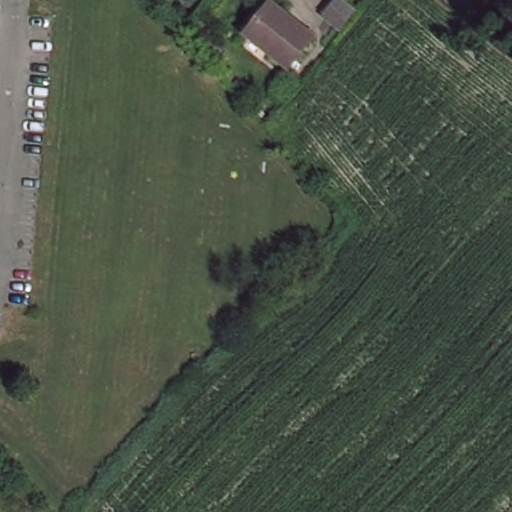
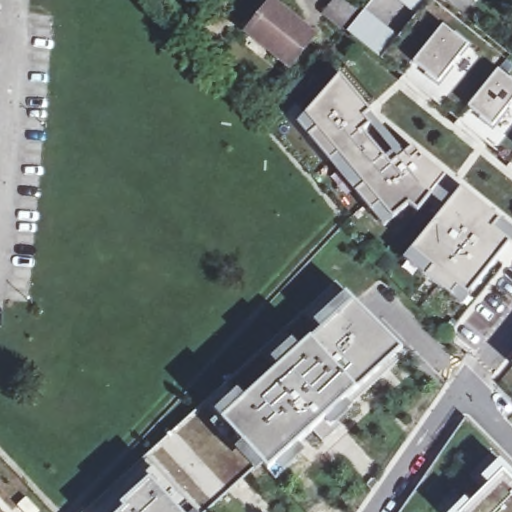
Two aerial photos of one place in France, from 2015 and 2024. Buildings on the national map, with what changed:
new [(348,33),(374,0),(440,0),(512,57),(512,164),(348,33)]
unchanged [(273,2),(315,38),(289,68),(271,53),(275,49),(251,28),(273,2)]
new [(341,157),(332,164),(309,138),(319,131),(306,117),(341,77),(373,114),(366,120),(373,128),(365,134),(393,167),(414,149),(421,156),(417,159),(420,162),(424,159),(447,178),(419,214),(411,207),(394,221),(378,202),(369,209),(357,194),(366,187),(344,161),(341,157)]
new [(501,221),(494,230),(511,244),(498,260),(499,261),(472,294),(463,286),(453,298),(428,277),(434,269),(413,251),(449,207),(449,208),(463,190),(501,221)]
new [(338,285),(409,356),(337,422),(344,429),(326,445),(315,434),(271,474),(263,465),(212,512),(90,512),(338,285)]
new [(468,419),(512,463),(512,512),(403,512),(468,419)]

